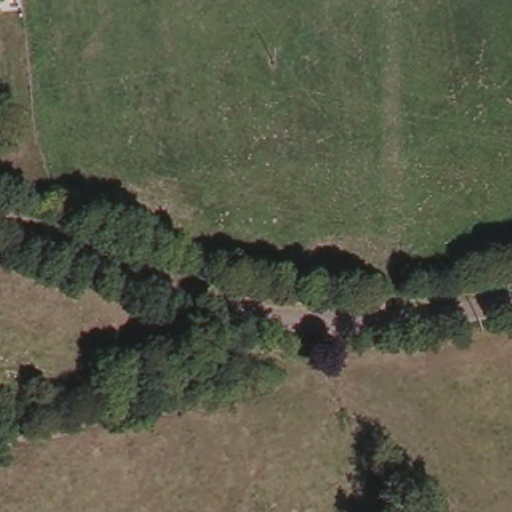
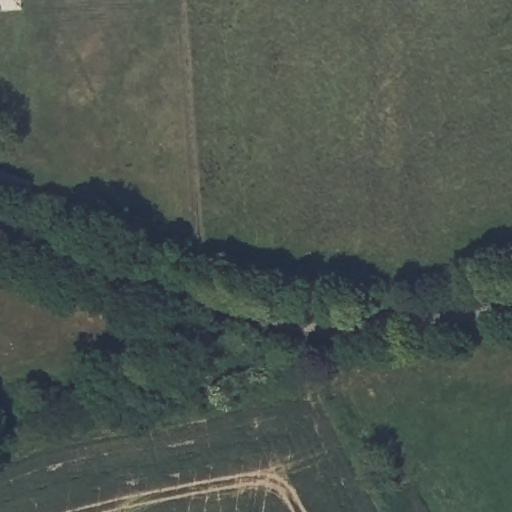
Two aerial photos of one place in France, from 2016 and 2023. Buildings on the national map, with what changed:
unchanged [(0,6),(0,0),(6,0),(6,6),(0,6)]

